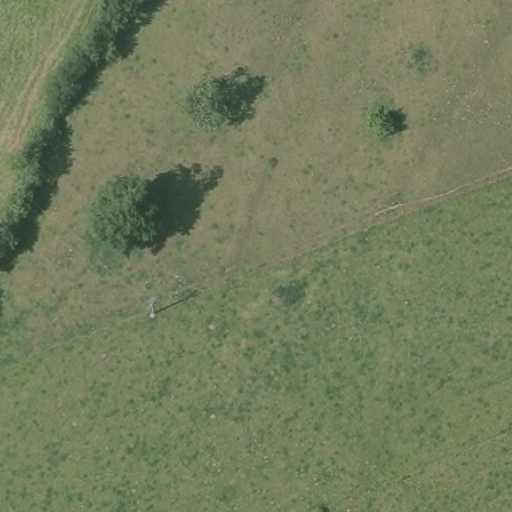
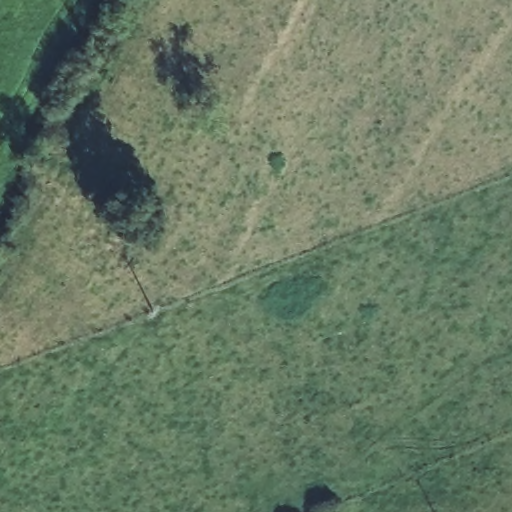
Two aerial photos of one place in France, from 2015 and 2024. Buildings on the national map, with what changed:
[]

